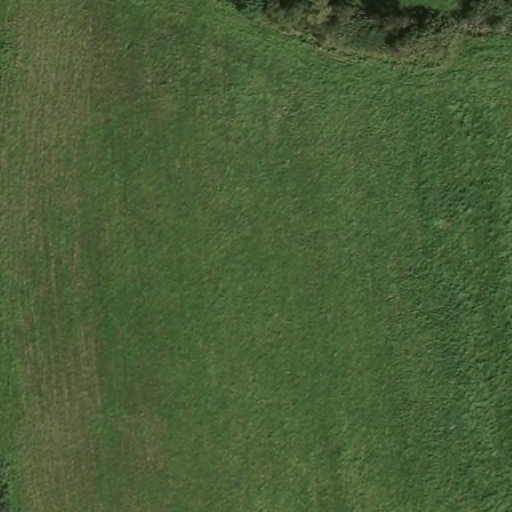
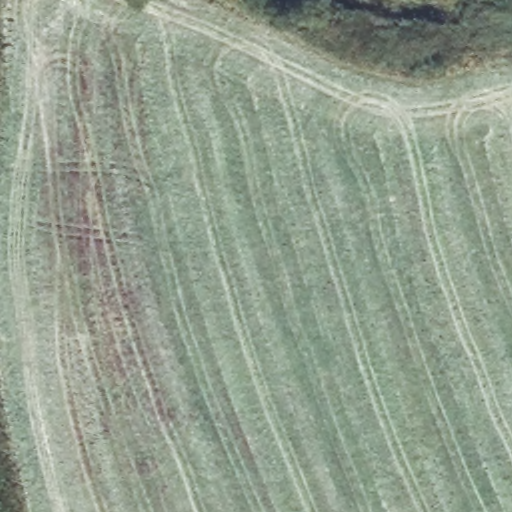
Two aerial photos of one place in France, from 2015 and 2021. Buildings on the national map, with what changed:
[]

